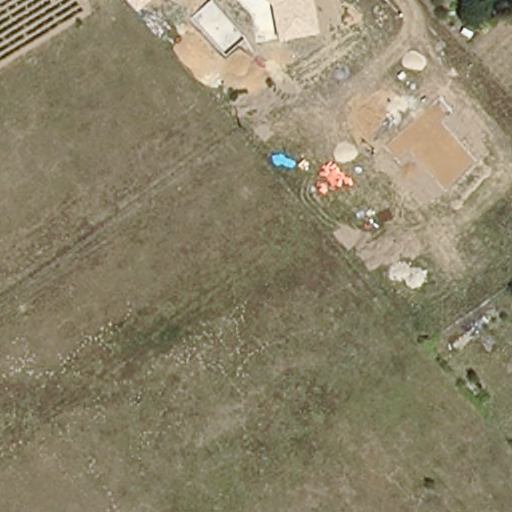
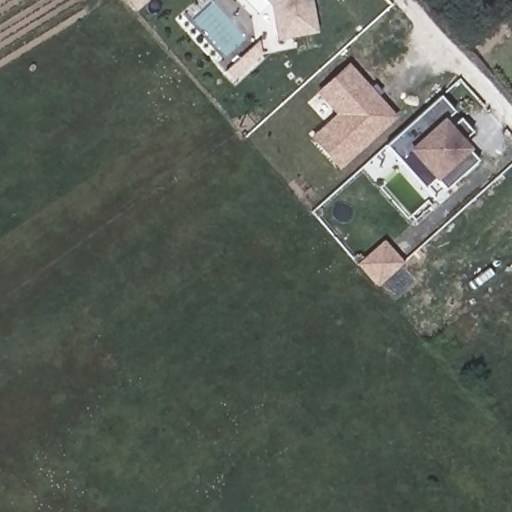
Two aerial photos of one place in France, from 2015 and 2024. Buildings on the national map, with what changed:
new [(137,7),(130,0),(145,0),(137,7)]
unchanged [(315,29),(278,37),(271,4),(266,0),(308,0),(315,29)]
new [(398,117),(338,171),(309,138),(335,115),(315,94),(349,63),(398,117)]
new [(452,111),(443,119),(451,127),(459,120),(471,133),(462,140),(471,150),(469,152),(476,161),(445,191),(434,179),(423,188),(385,146),(440,97),(452,111)]
new [(384,242),(402,262),(378,284),(360,263),(384,242)]

